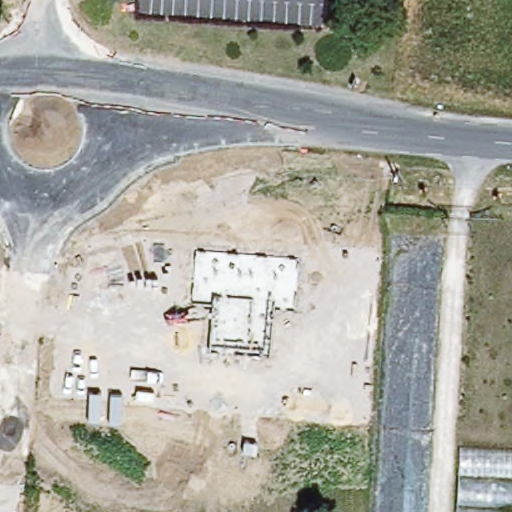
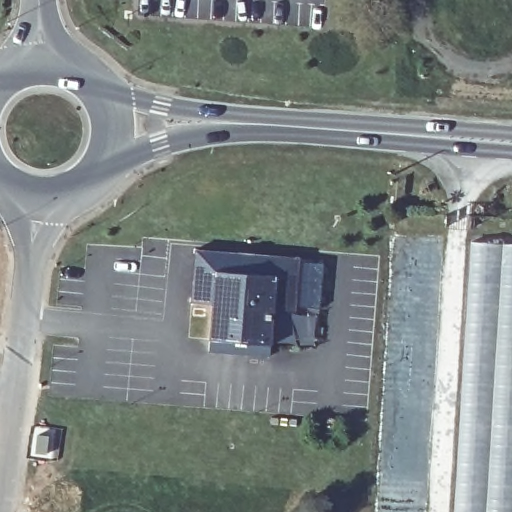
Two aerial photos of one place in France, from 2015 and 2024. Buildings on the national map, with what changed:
new [(512,243),(512,512),(452,512),(469,240),(512,243)]
new [(212,305),(190,303),(193,249),(297,259),(320,261),(312,345),(269,343),(268,357),(208,351),(210,339),(212,305)]

